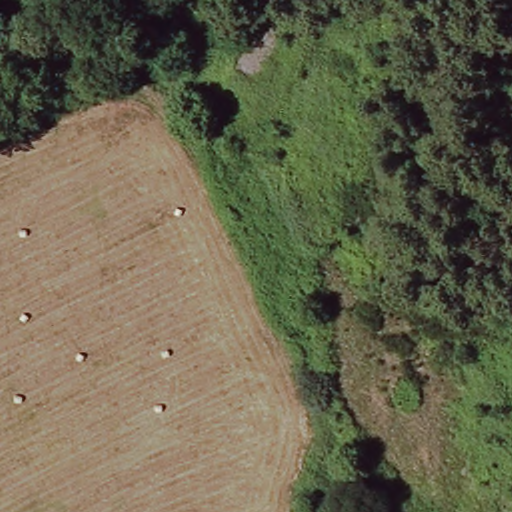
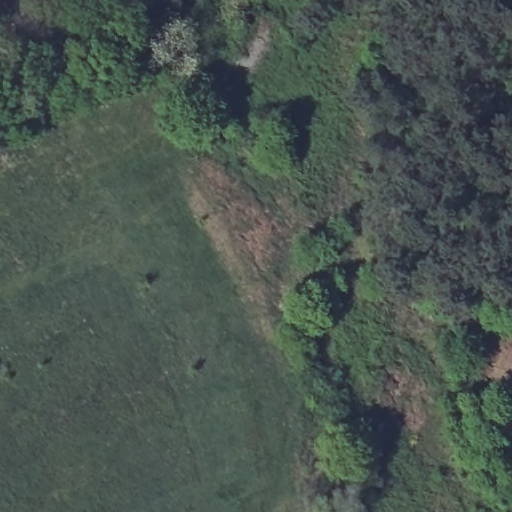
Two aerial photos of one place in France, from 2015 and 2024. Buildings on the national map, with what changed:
unchanged [(231,74),(266,19),(291,34),(257,90),(231,74)]

